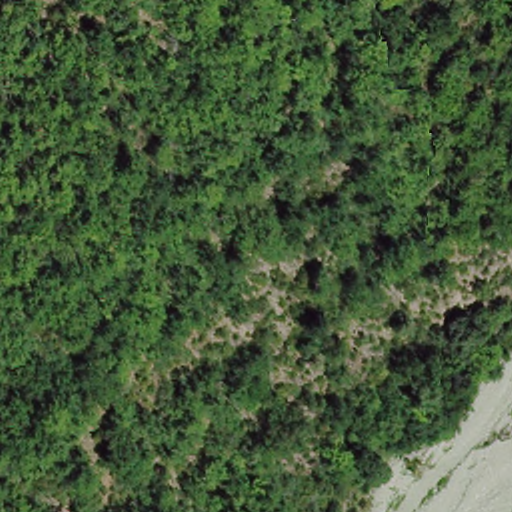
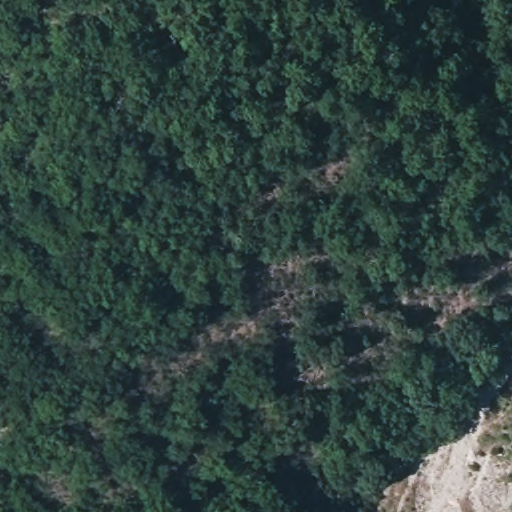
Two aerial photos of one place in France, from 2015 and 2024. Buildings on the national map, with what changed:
[]

